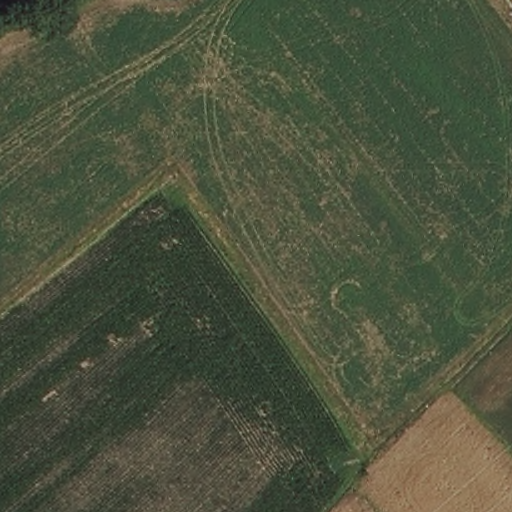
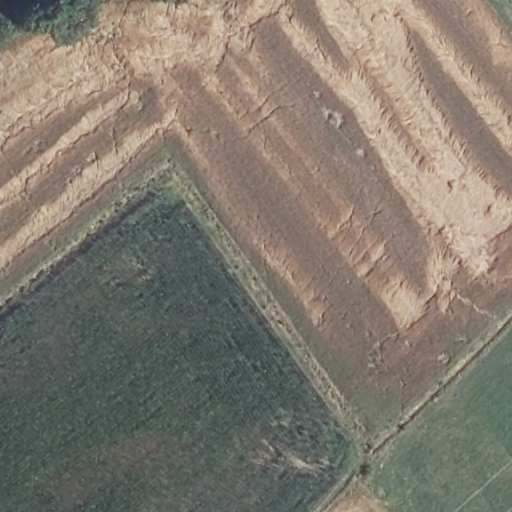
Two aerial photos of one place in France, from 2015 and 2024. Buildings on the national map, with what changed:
[]

